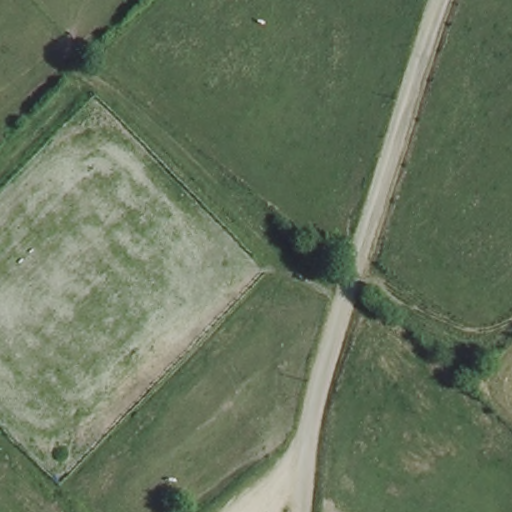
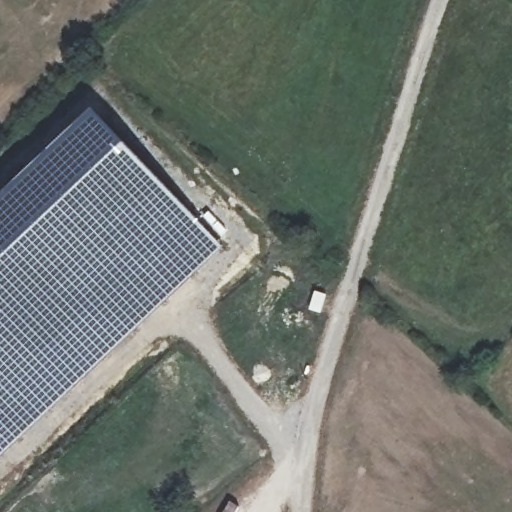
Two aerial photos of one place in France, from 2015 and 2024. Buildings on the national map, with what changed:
new [(222,246),(92,367),(91,366),(89,368),(90,369),(0,456),(0,195),(93,108),(222,246)]

